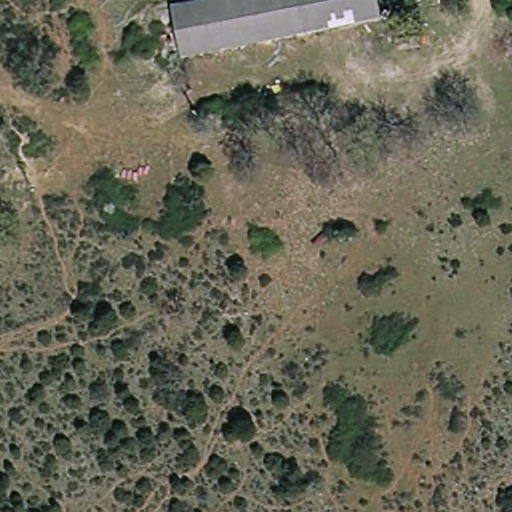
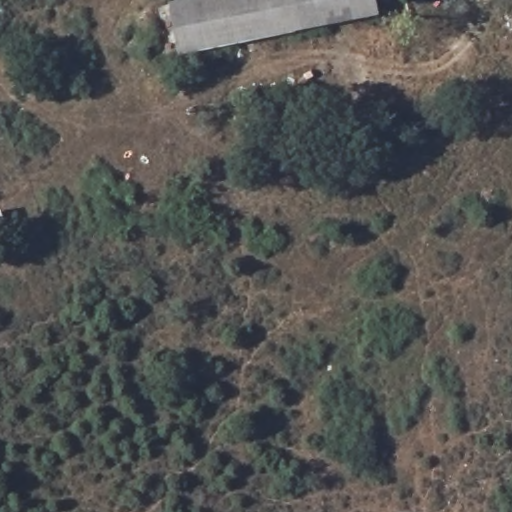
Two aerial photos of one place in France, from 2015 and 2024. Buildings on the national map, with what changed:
unchanged [(155,20),(233,0),(383,0),(384,6),(167,64),(155,20)]

